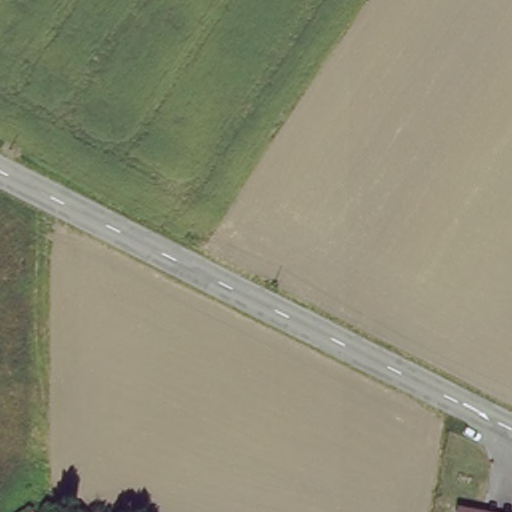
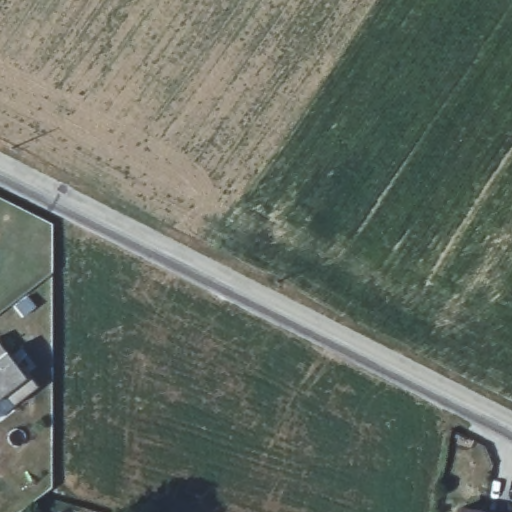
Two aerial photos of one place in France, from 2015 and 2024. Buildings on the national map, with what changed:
new [(29,371),(39,383),(14,404),(4,392),(0,396),(0,343),(26,373),(29,371)]
unchanged [(485,512),(457,512),(459,505),(485,510),(485,512)]

